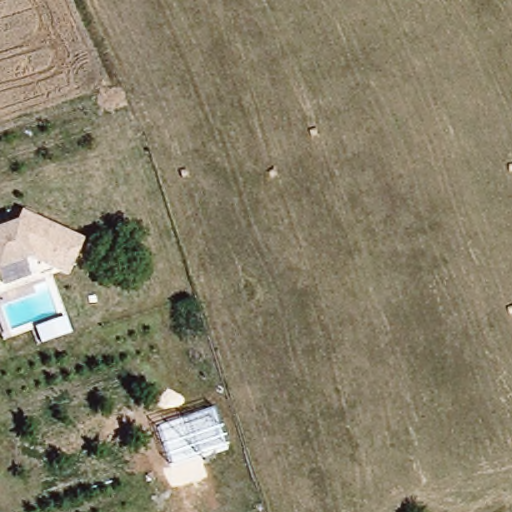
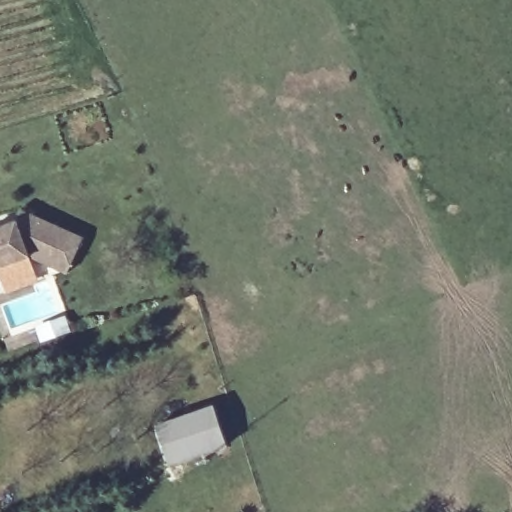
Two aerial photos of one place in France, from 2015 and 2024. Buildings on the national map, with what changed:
unchanged [(35,257),(1,266),(0,268),(0,227),(22,220),(28,210),(42,217),(89,241),(70,275),(35,257)]
new [(216,406),(227,444),(169,462),(158,423),(216,406)]

